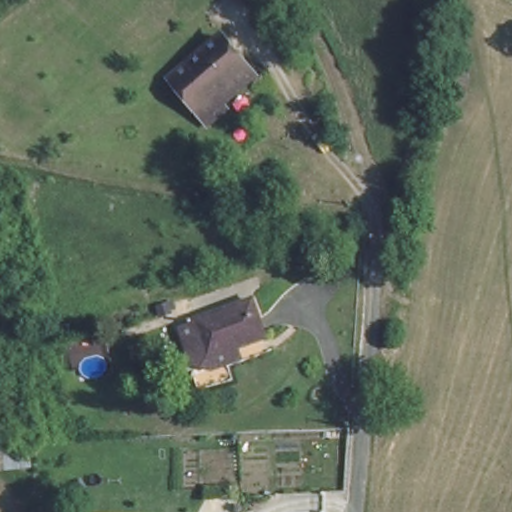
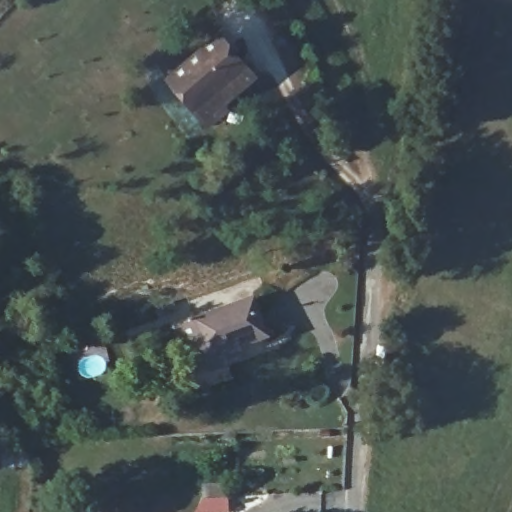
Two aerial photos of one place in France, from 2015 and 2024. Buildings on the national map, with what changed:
unchanged [(201,114),(174,80),(225,39),(254,74),(201,114)]
unchanged [(190,324),(247,304),(261,341),(231,352),(204,362),(201,353),(190,324)]
unchanged [(231,482),(231,496),(208,496),(208,482),(231,482)]

